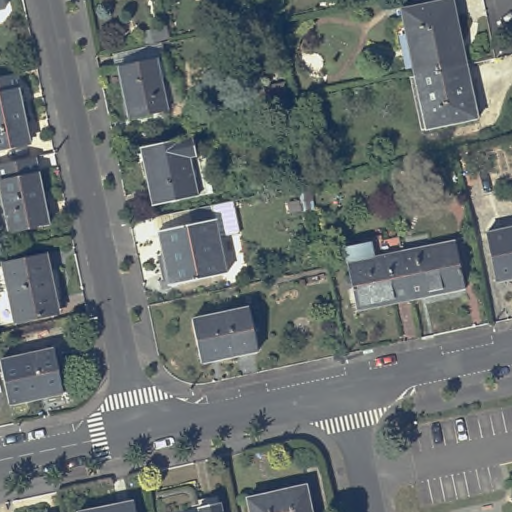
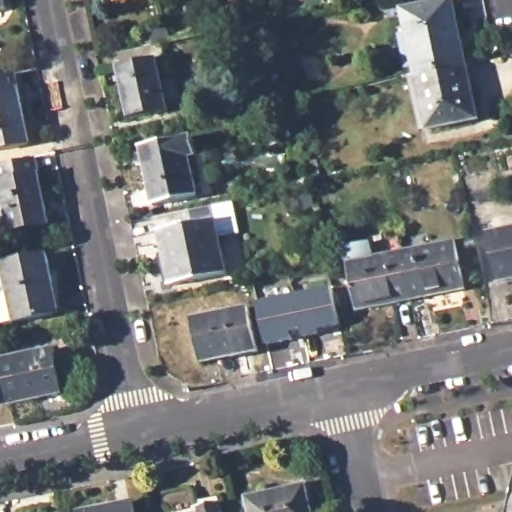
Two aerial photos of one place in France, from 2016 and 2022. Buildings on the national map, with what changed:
unchanged [(0,2),(0,0),(4,0),(5,1),(0,2)]
unchanged [(441,0),(453,0),(467,64),(415,75),(400,9),(441,0)]
unchanged [(161,89),(167,120),(131,128),(120,75),(116,61),(162,51),(166,65),(170,87),(161,89)]
unchanged [(415,75),(467,64),(477,118),(426,129),(415,75)]
unchanged [(15,85),(26,139),(0,144),(0,71),(12,69),(15,85)]
unchanged [(145,159),(139,160),(137,152),(142,151),(142,147),(192,136),(195,150),(187,152),(197,196),(155,205),(145,159)]
unchanged [(0,187),(0,167),(36,160),(50,226),(11,235),(1,186),(0,187)]
unchanged [(161,234),(215,222),(227,275),(172,287),(161,234)]
unchanged [(498,281),(489,238),(512,233),(512,278),(498,281)]
unchanged [(402,251),(455,240),(465,288),(412,299),(402,251)]
unchanged [(348,263),(402,251),(412,299),(358,310),(348,263)]
unchanged [(3,266),(45,257),(57,315),(15,324),(3,266)]
new [(333,288),(341,325),(319,330),(320,334),(304,337),(302,330),(292,332),(293,340),(267,345),(258,305),(333,288)]
unchanged [(186,325),(256,310),(265,354),(223,363),(222,358),(194,365),(186,325)]
unchanged [(0,366),(0,361),(54,350),(62,393),(8,405),(2,379),(0,366)]
unchanged [(245,500),(303,486),(309,512),(247,512),(245,500)]
unchanged [(130,502),(132,512),(84,512),(130,502)]
unchanged [(192,508),(216,503),(217,512),(192,512),(192,508)]

